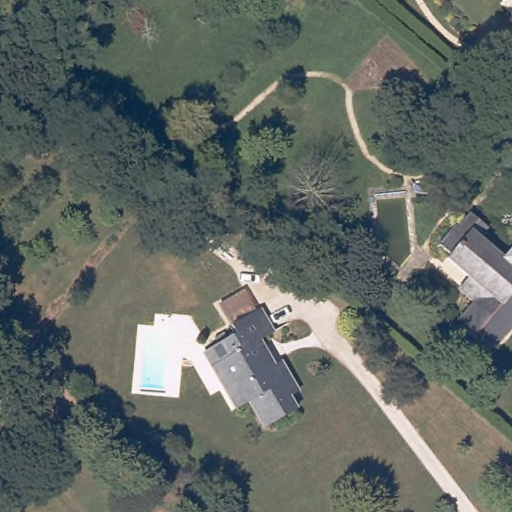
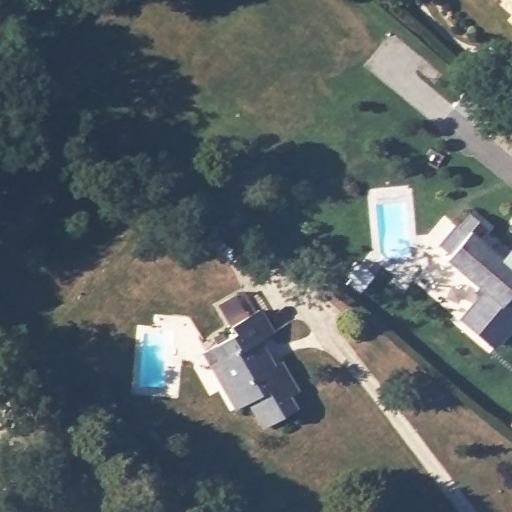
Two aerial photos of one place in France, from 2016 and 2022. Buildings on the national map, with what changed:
unchanged [(480,105),(495,117),(485,131),(470,119),(480,105)]
unchanged [(490,343),(465,321),(460,318),(468,308),(473,302),(459,289),(469,277),(446,256),(450,252),(439,243),(455,224),(457,226),(470,213),(486,228),(477,237),(501,259),(512,246),(512,325),(502,337),(493,347),(490,343)]
unchanged [(508,226),(512,221),(512,229),(508,226)]
unchanged [(203,351),(235,333),(231,325),(219,305),(247,287),(260,308),(273,333),(260,342),(272,364),(280,360),(298,391),(290,396),(297,408),(264,427),(250,401),(236,408),(203,351)]

